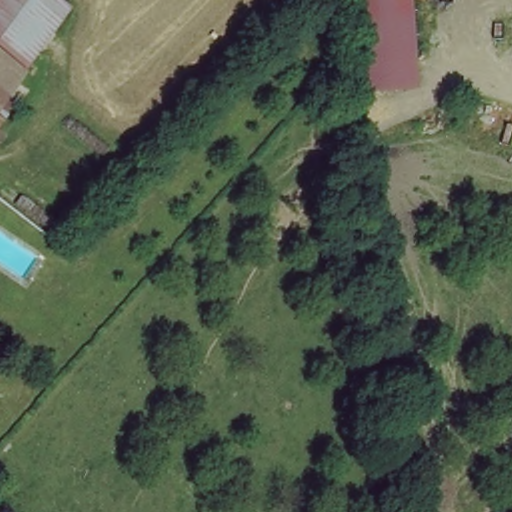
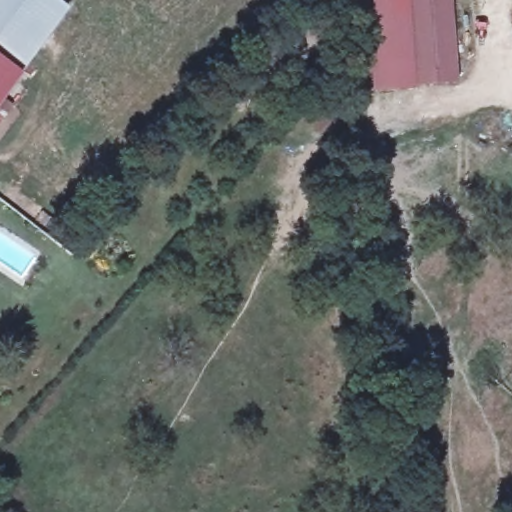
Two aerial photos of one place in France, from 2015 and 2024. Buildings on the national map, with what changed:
unchanged [(33,61),(0,28),(0,0),(49,0),(70,22),(33,61)]
unchanged [(361,91),(356,0),(409,0),(414,87),(361,91)]
new [(414,87),(409,0),(452,0),(458,82),(414,87)]
unchanged [(0,74),(0,28),(33,61),(9,84),(0,74)]
unchanged [(11,86),(0,96),(0,74),(9,84),(11,86)]

